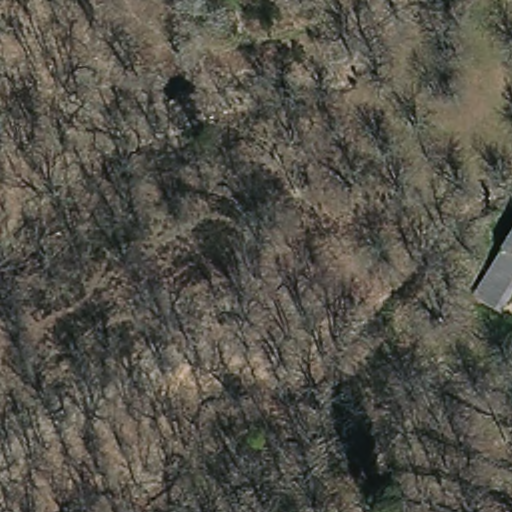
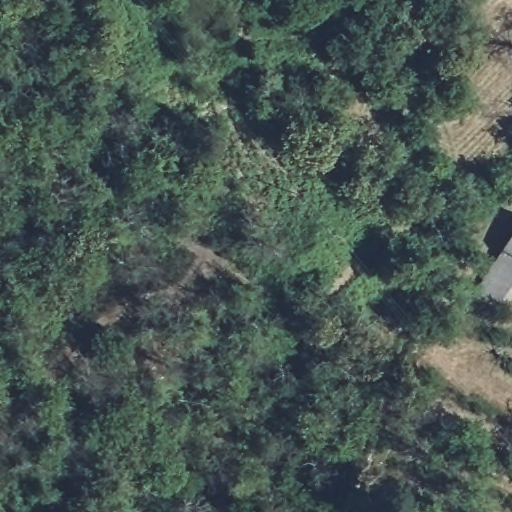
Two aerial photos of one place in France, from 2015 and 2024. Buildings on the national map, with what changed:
unchanged [(512,231),(512,244),(506,241),(512,231)]
unchanged [(506,241),(512,244),(512,291),(508,297),(481,282),(506,241)]

